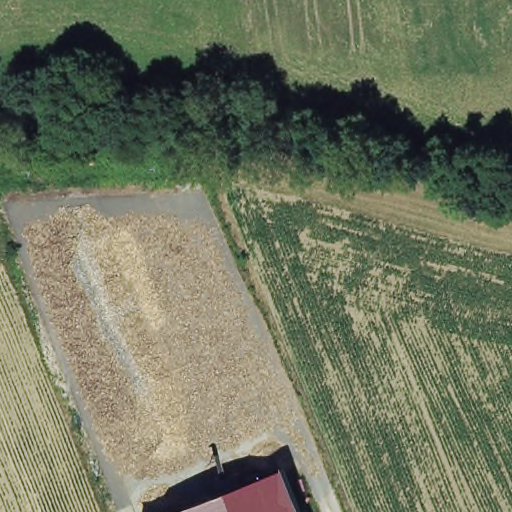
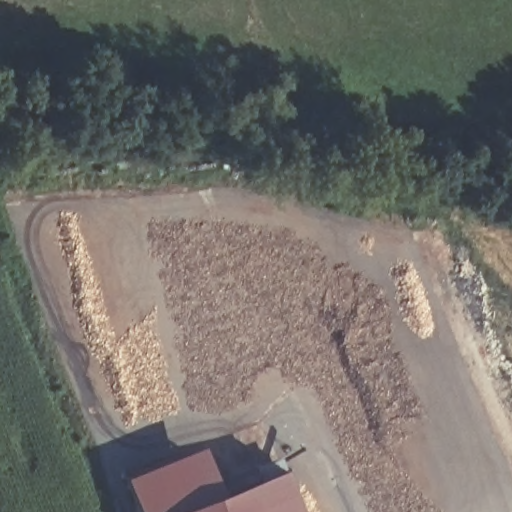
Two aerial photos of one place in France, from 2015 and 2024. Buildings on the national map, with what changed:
new [(172,512),(139,512),(127,476),(207,444),(228,489),(172,512)]
unchanged [(283,468),(300,512),(174,512),(283,468)]

